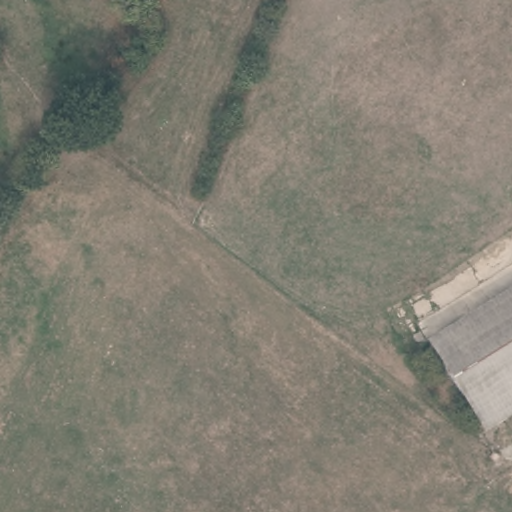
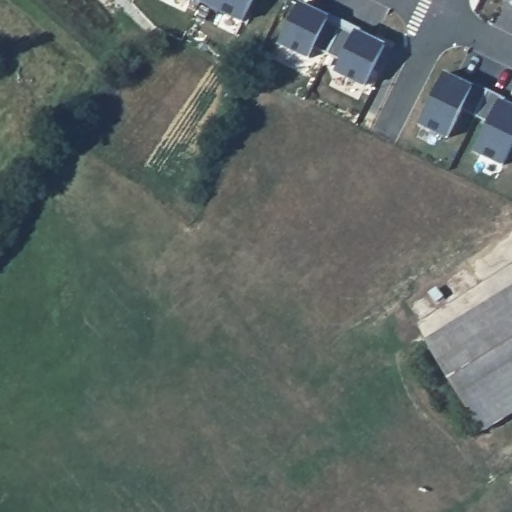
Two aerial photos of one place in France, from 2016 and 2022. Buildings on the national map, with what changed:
new [(196,0),(251,0),(241,22),(196,0)]
new [(511,4),(512,1),(512,5),(511,4)]
new [(334,72),(341,58),(315,45),(308,59),(278,45),(298,3),(385,44),(363,86),(334,72)]
new [(442,74),(512,105),(512,143),(502,165),(473,152),(487,122),(460,110),(447,139),(417,126),(442,74)]
unchanged [(423,350),(512,286),(512,419),(481,441),(434,367),(423,350)]

